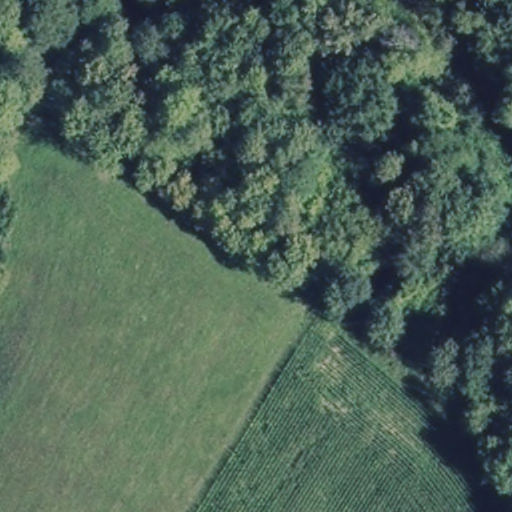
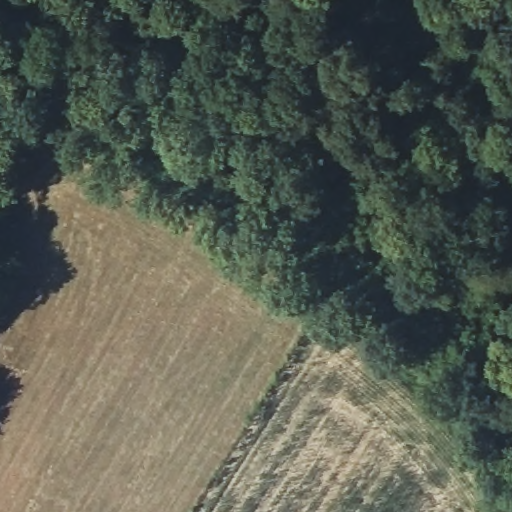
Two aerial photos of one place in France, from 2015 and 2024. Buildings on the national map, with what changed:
[]

